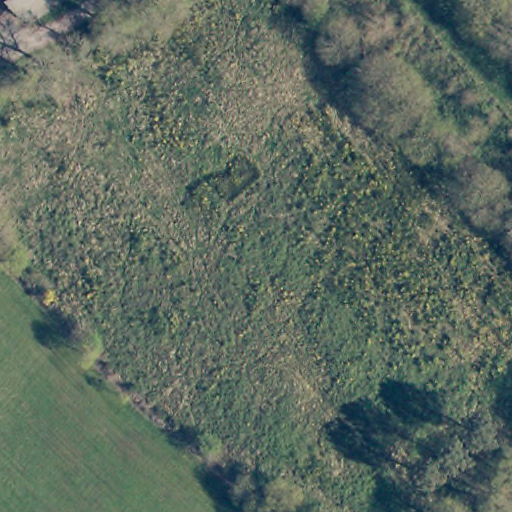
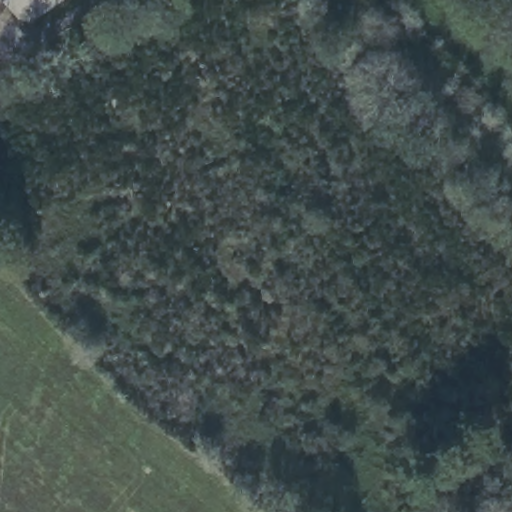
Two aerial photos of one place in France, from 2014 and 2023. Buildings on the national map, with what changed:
unchanged [(25,25),(21,19),(17,22),(5,8),(8,3),(6,0),(58,0),(25,25)]

